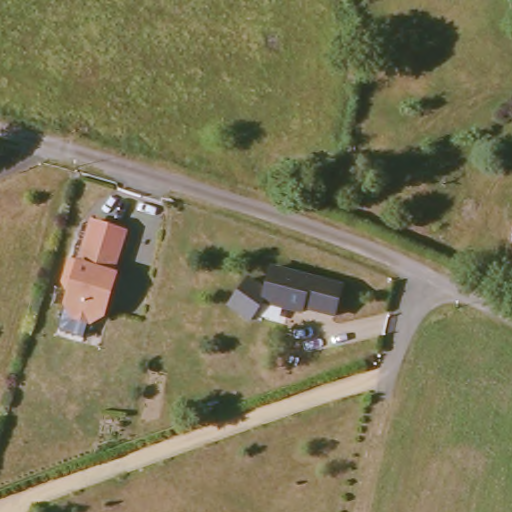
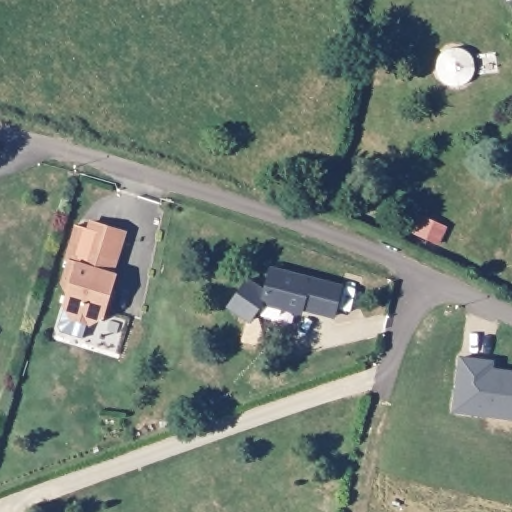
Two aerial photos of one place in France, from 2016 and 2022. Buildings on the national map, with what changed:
unchanged [(88,220),(126,230),(99,328),(59,316),(88,220)]
unchanged [(266,267),(336,288),(327,318),(296,308),(294,313),(255,302),(266,267)]
unchanged [(251,321),(227,306),(247,278),(260,286),(255,302),(264,304),(251,321)]
new [(460,357),(494,362),(494,368),(512,371),(512,420),(452,412),(460,357)]

